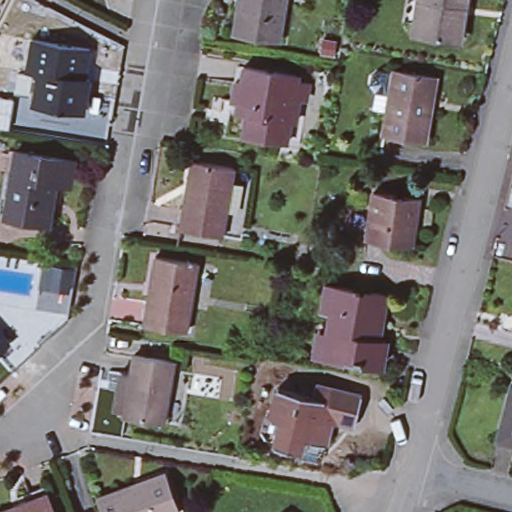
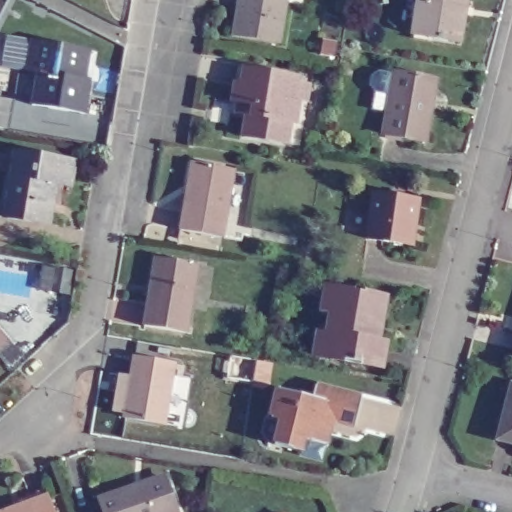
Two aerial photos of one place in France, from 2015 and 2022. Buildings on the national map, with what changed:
unchanged [(233,31),(238,0),(286,0),(280,39),(233,31)]
unchanged [(460,9),(454,45),(414,37),(420,0),(467,0),(466,9),(460,9)]
unchanged [(82,71),(81,71),(79,82),(87,84),(81,115),(30,107),(35,76),(23,74),(29,45),(85,54),(82,71)]
unchanged [(304,148),(292,146),(247,139),(250,118),(242,116),(243,104),(238,104),(240,85),(246,86),(248,70),(302,79),(301,85),(315,87),(304,148)]
unchanged [(432,115),(427,143),(385,136),(388,115),(373,114),(375,96),(370,90),(372,80),(379,75),(394,77),(395,75),(434,82),(429,114),(432,115)]
unchanged [(6,127),(0,126),(0,96),(12,98),(6,127)]
unchanged [(55,186),(52,202),(56,203),(52,227),(8,220),(16,176),(9,175),(12,155),(20,155),(79,165),(75,189),(55,186)]
unchanged [(222,240),(179,232),(190,166),(233,173),(222,240)]
unchanged [(409,245),(364,239),(370,195),(415,201),(409,245)]
unchanged [(195,265),(184,334),(142,327),(154,259),(195,265)]
unchanged [(316,336),(325,338),(329,316),(320,315),(324,293),(355,298),(355,300),(360,301),(360,299),(384,303),(376,347),(384,348),(379,372),(329,363),(312,361),(316,336)]
unchanged [(0,348),(0,341),(4,345),(0,348)]
unchanged [(160,423),(121,416),(132,357),(172,365),(160,423)]
unchanged [(499,437),(512,385),(512,441),(499,437)]
unchanged [(315,387),(362,398),(354,428),(331,422),(325,447),(301,441),(298,454),(274,448),(280,425),(269,421),(276,392),(311,401),(315,387)]
unchanged [(136,487),(167,478),(178,512),(103,512),(98,495),(135,484),(136,487)]
unchanged [(47,503),(51,512),(23,512),(47,503)]

